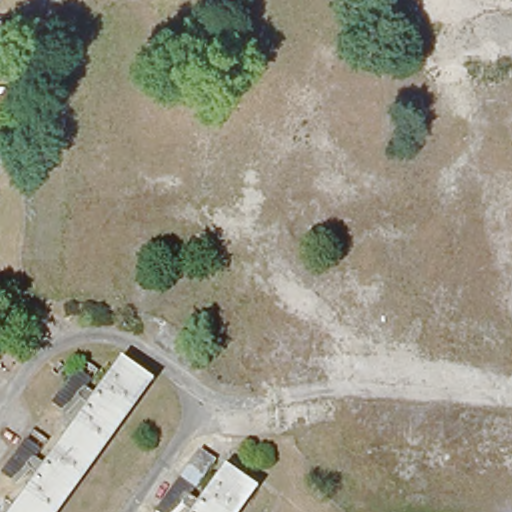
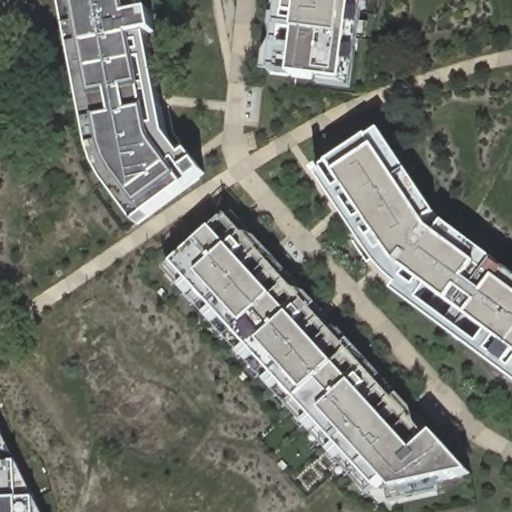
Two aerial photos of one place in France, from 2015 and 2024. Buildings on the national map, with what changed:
demolished [(77,4),(77,0),(91,0),(119,2),(118,6),(115,6),(95,295),(97,295),(97,299),(56,296),(56,293),(60,294),(80,4),(77,4)]
new [(151,12),(155,33),(148,35),(167,137),(183,157),(188,152),(203,174),(136,225),(97,168),(92,148),(63,0),(142,0),(144,13),(151,12)]
demolished [(302,0),(275,365),(279,365),(279,369),(237,367),(238,363),(242,363),(267,0),(302,0)]
new [(362,25),(358,50),(357,63),(355,86),(322,84),(321,78),(291,74),(272,72),(265,71),(265,63),(268,46),(268,39),(273,0),(365,0),(363,12),(362,25)]
demolished [(313,21),(320,0),(334,0),(331,32),(313,31),(313,21)]
demolished [(488,0),(465,330),(469,331),(468,335),(425,333),(425,328),(429,328),(453,0),(488,0)]
demolished [(499,35),(508,1),(512,2),(512,43),(499,43),(499,35)]
demolished [(124,66),(125,56),(135,23),(146,24),(143,68),(124,66)]
demolished [(494,122),(503,88),(512,88),(512,116),(511,131),(493,130),(494,122)]
demolished [(305,135),(306,126),(316,93),(327,95),(324,136),(305,135)]
demolished [(116,170),(117,159),(128,128),(138,129),(135,172),(116,170)]
new [(400,287),(383,271),(320,176),(333,166),(331,163),(369,136),(371,140),(382,132),(438,216),(427,224),(431,230),(441,237),(447,224),(512,272),(512,380),(396,293),(400,287)]
demolished [(487,215),(487,208),(497,174),(508,175),(505,217),(487,215)]
demolished [(297,240),(298,230),(308,197),(319,199),(316,241),(297,240)]
new [(415,421),(431,439),(436,435),(471,475),(442,481),(443,492),(395,503),(384,480),(376,489),(369,496),(169,272),(176,265),(214,230),(227,217),(415,421)]
demolished [(109,276),(110,261),(120,232),(130,233),(127,277),(109,276)]
demolished [(481,301),(481,293),(490,260),(502,261),(499,302),(481,301)]
demolished [(290,344),(291,336),(301,301),(311,302),(308,346),(290,344)]
demolished [(115,369),(112,367),(115,363),(149,387),(147,391),(144,389),(55,512),(12,512),(115,369)]
demolished [(86,386),(80,395),(55,416),(46,409),(71,375),(86,386)]
demolished [(414,433),(402,432),(372,422),(373,410),(416,413),(414,433)]
demolished [(510,440),(500,439),(468,427),(468,417),(510,420),(510,440)]
new [(0,428),(0,464),(18,463),(20,502),(36,502),(36,512),(0,512),(0,428)]
demolished [(344,439),(344,442),(512,453),(512,488),(342,477),(342,481),(337,481),(340,439),(344,439)]
demolished [(36,456),(29,464),(6,485),(0,481),(0,473),(21,444),(36,456)]
demolished [(199,454),(215,465),(202,483),(186,472),(199,454)]
demolished [(223,476),(220,473),(222,470),(258,494),(255,498),(251,496),(239,512),(197,512),(223,476)]
demolished [(196,491),(189,501),(176,512),(157,512),(180,480),(196,491)]

